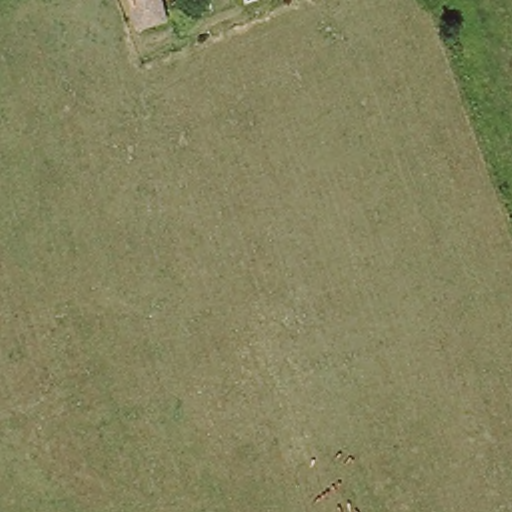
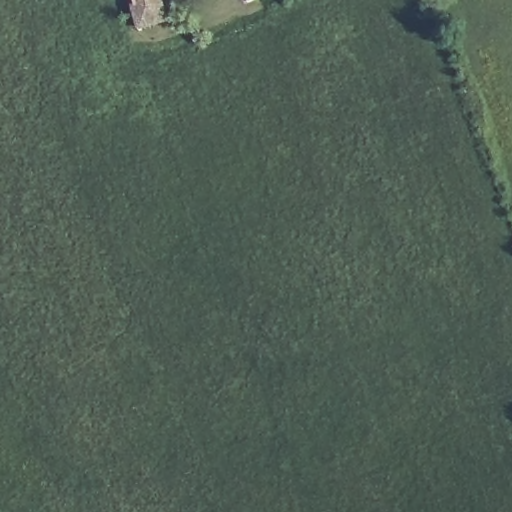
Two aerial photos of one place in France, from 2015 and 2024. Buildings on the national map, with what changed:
unchanged [(161,19),(134,26),(127,0),(155,0),(161,19)]

